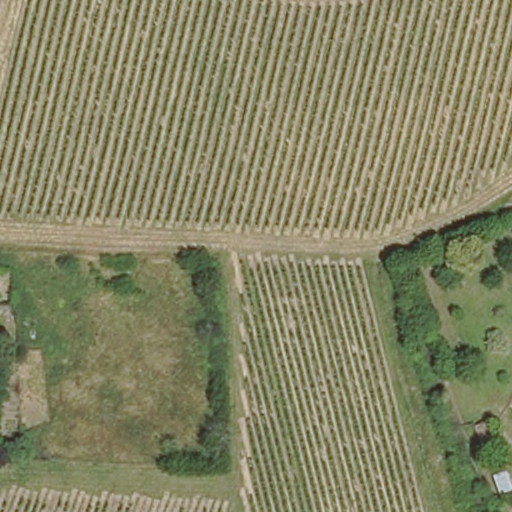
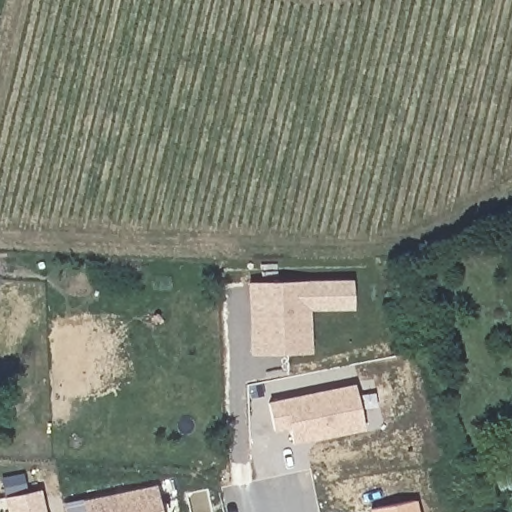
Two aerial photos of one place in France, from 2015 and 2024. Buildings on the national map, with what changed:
new [(305,333),(310,333),(310,353),(249,354),(247,282),(350,280),(350,308),(308,309),(305,333)]
new [(356,428),(357,432),(293,445),(290,429),(275,432),(269,403),(354,385),(362,426),(356,428)]
new [(82,501),(155,486),(161,512),(84,512),(82,501)]
new [(45,512),(7,512),(5,498),(40,490),(45,512)]
new [(369,509),(415,500),(418,512),(370,512),(369,509)]

